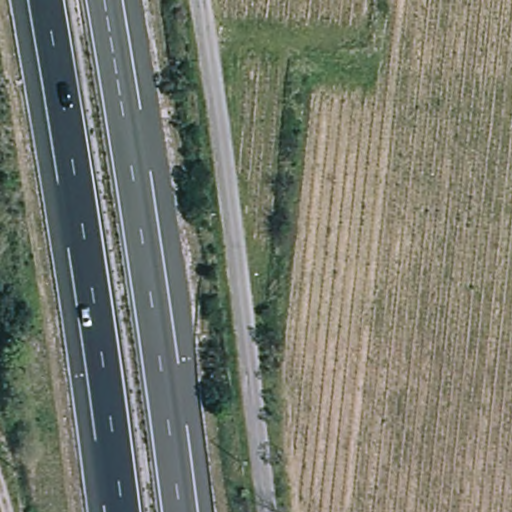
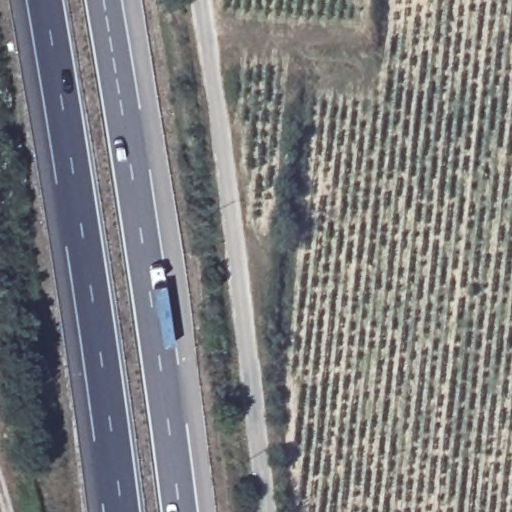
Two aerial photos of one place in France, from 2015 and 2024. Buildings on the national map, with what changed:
[]

